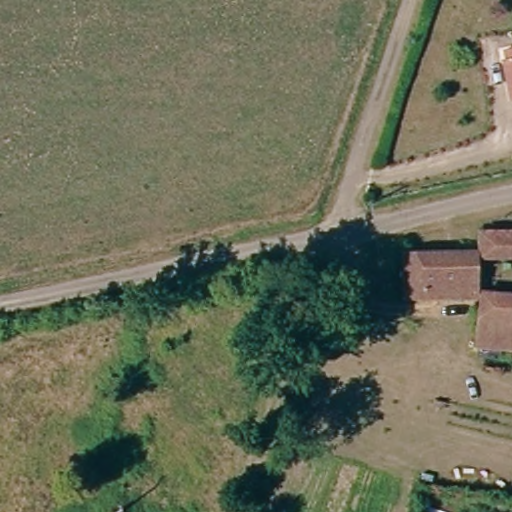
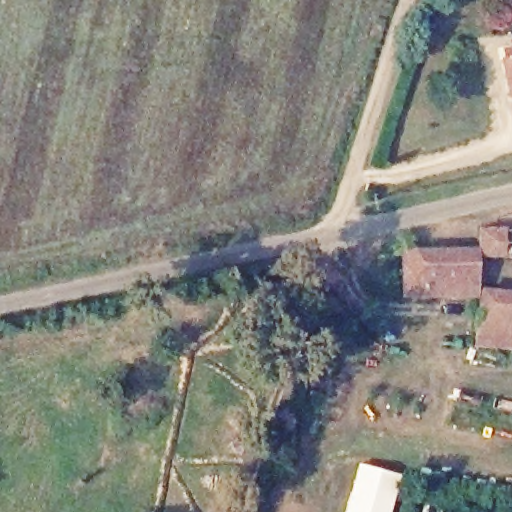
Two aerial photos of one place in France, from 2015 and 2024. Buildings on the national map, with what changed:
unchanged [(503,45),(512,44),(512,85),(507,85),(503,45)]
unchanged [(512,225),(512,250),(484,250),(483,224),(512,225)]
unchanged [(424,251),(484,250),(485,292),(485,302),(423,304),(424,251)]
unchanged [(512,292),(512,348),(483,348),(485,302),(485,292),(512,292)]
new [(347,512),(359,464),(401,475),(391,512),(347,512)]

